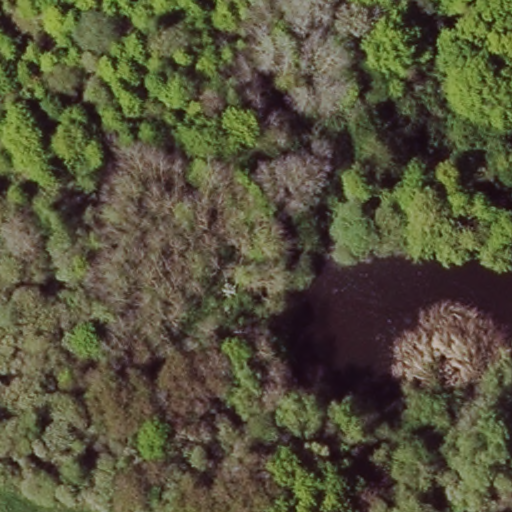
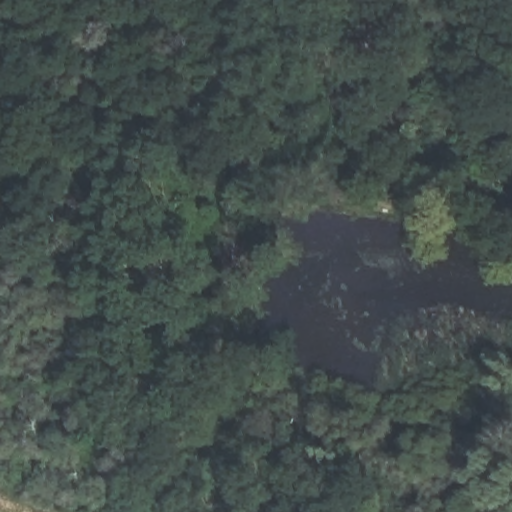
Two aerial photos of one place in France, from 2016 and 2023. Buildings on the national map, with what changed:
unchanged [(377,53),(375,86),(340,86),(344,49),(377,53)]

